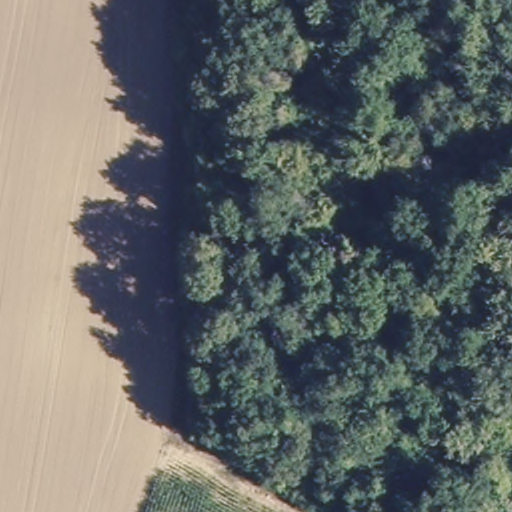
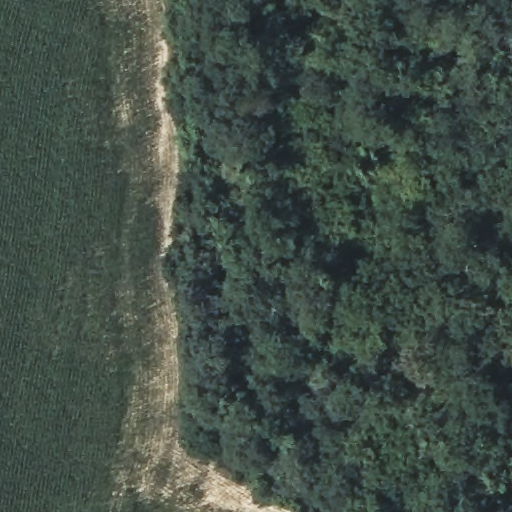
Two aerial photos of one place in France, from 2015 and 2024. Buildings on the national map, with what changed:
[]

